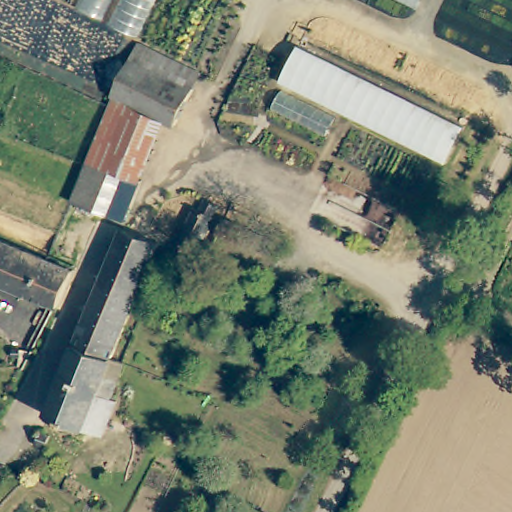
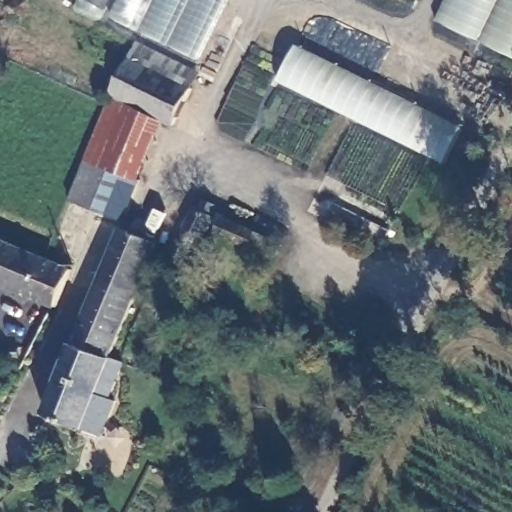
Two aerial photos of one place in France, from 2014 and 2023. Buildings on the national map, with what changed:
new [(202,57),(110,13),(107,19),(80,8),(84,0),(230,0),(202,57)]
new [(437,20),(447,0),(512,0),(512,53),(437,20)]
unchanged [(130,57),(137,39),(172,54),(197,64),(190,82),(130,57)]
unchanged [(458,127),(443,163),(281,82),(300,44),(458,127)]
unchanged [(130,57),(190,82),(175,116),(171,114),(134,98),(116,91),(130,57)]
unchanged [(74,194),(116,91),(134,98),(171,114),(144,174),(130,168),(111,211),(89,201),(74,194)]
unchanged [(193,207),(198,209),(205,196),(218,203),(204,231),(200,230),(185,255),(172,247),(193,207)]
unchanged [(276,253),(252,242),(219,227),(226,212),(258,228),(282,239),(276,253)]
unchanged [(117,395),(116,397),(102,392),(89,425),(89,426),(50,411),(106,276),(126,227),(164,244),(144,293),(130,328),(122,348),(119,355),(125,357),(131,359),(132,360),(117,395)]
unchanged [(0,277),(0,230),(54,253),(62,257),(79,264),(61,302),(0,277)]

